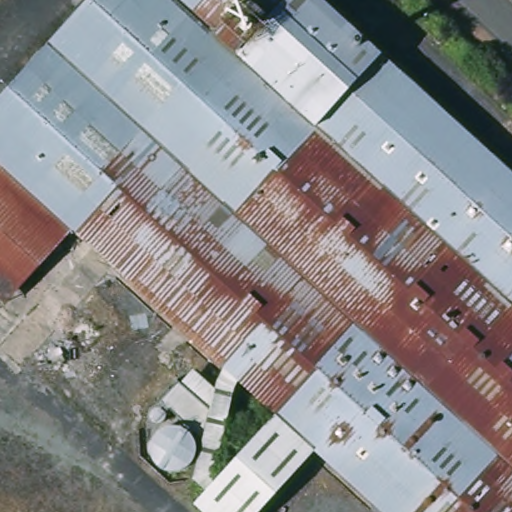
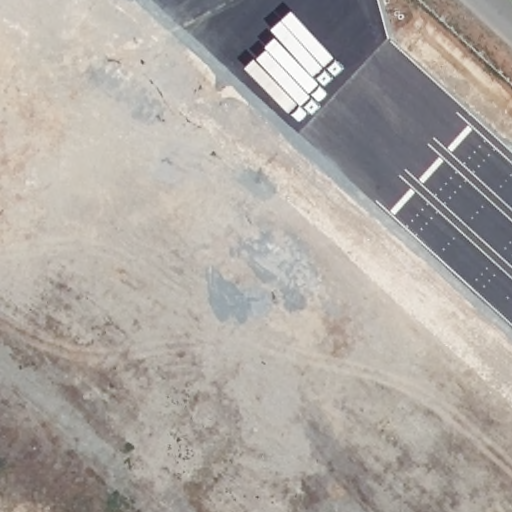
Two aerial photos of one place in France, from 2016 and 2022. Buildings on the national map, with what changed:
demolished [(256,512),(205,512),(195,503),(207,489),(194,478),(209,424),(219,389),(226,364),(72,223),(0,156),(0,96),(88,0),(325,0),(459,125),(512,174),(512,512),(387,512),(315,446),(256,512)]
demolished [(192,368),(219,389),(209,424),(198,432),(158,402),(192,368)]

